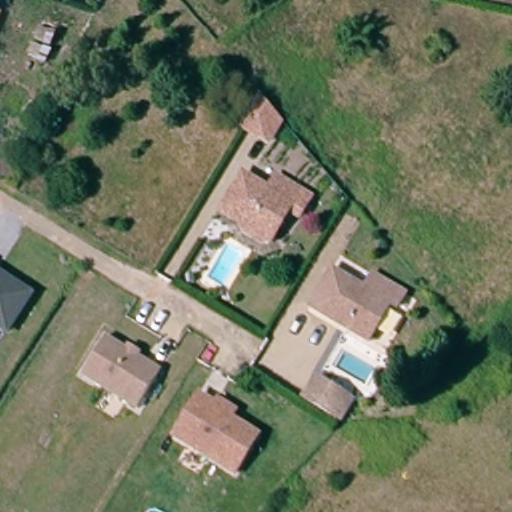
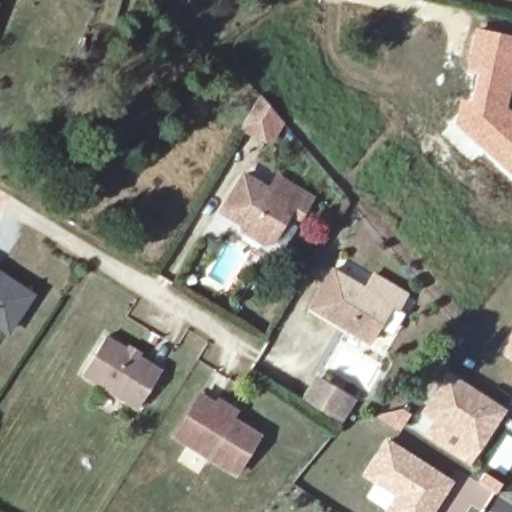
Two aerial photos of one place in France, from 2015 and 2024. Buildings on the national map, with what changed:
new [(454,113),(460,94),(467,95),(471,76),(465,74),(475,26),(512,34),(512,85),(507,106),(512,110),(512,177),(483,152),(472,162),(440,133),(450,121),(454,113)]
unchanged [(262,137),(245,127),(265,95),(278,111),(283,117),(268,141),(262,137)]
unchanged [(258,237),(249,237),(237,230),(233,220),(215,209),(240,171),(265,187),(273,175),(305,196),(300,204),(293,215),(278,206),(258,237)]
unchanged [(363,285),(370,273),(403,291),(393,309),(385,305),(363,340),(305,305),(328,266),(363,285)]
unchanged [(5,335),(0,331),(0,277),(31,299),(5,335)]
new [(498,352),(512,329),(512,360),(498,352)]
unchanged [(162,375),(139,411),(85,375),(109,338),(162,375)]
new [(418,411),(445,369),(505,410),(478,450),(418,411)]
unchanged [(337,419),(330,414),(301,396),(314,377),(342,393),(351,398),(337,419)]
unchanged [(200,385),(216,395),(215,398),(259,426),(235,463),(175,425),(200,385)]
new [(396,489),(364,470),(385,436),(447,473),(423,512),(397,512),(386,505),(396,489)]

